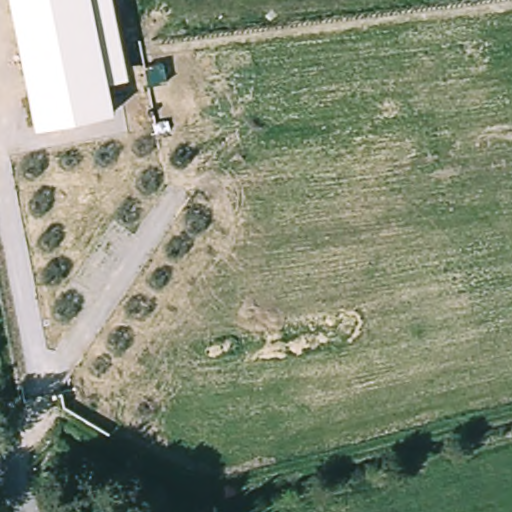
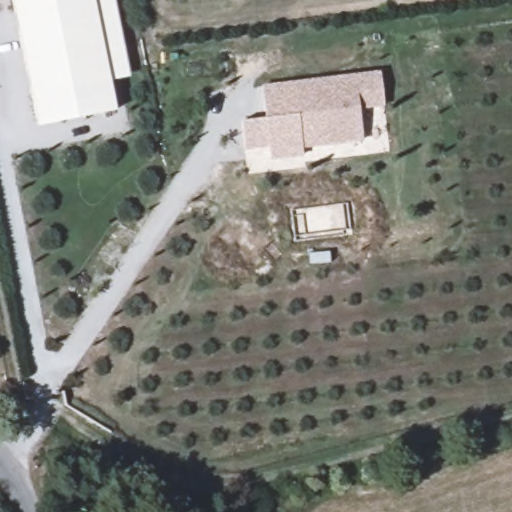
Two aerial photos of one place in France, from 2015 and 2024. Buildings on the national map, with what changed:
unchanged [(109,81),(115,110),(36,127),(10,0),(113,0),(130,77),(109,81)]
new [(381,71),(385,107),(360,110),(363,142),(302,150),(303,157),(270,162),(268,147),(244,151),(240,122),(297,114),(294,81),(381,71)]
new [(297,114),(265,118),(261,85),(294,81),(297,114)]
unchanged [(42,451),(60,451),(60,463),(44,464),(42,451)]

